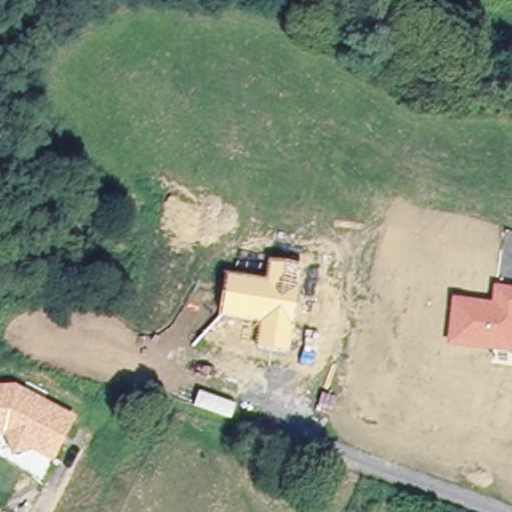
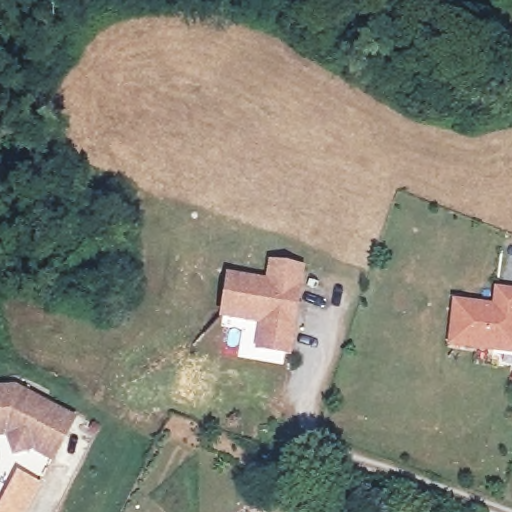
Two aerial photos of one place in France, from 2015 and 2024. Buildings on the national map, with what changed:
unchanged [(268,261),(302,267),(290,354),(256,350),(259,325),(218,319),(224,274),(265,281),(268,261)]
unchanged [(512,288),(512,354),(445,348),(451,299),(491,304),(493,287),(512,288)]
unchanged [(15,387),(76,419),(52,463),(32,452),(12,458),(5,437),(0,437),(0,387),(15,387)]
new [(41,484),(26,512),(0,512),(0,503),(16,472),(41,484)]

